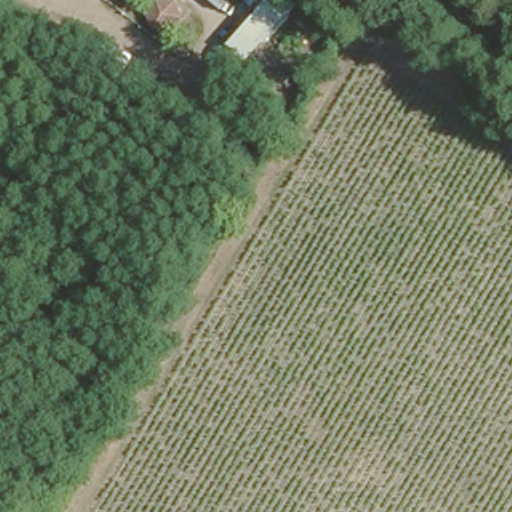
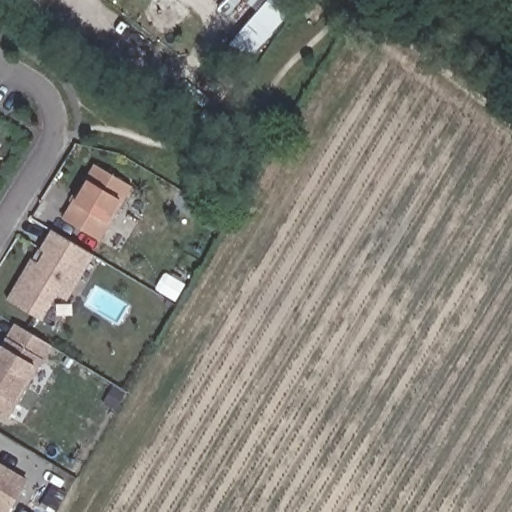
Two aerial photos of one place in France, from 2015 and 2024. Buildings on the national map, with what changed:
unchanged [(184,19),(174,33),(153,32),(146,16),(155,0),(169,0),(175,0),(184,19)]
new [(220,6),(225,0),(241,0),(229,14),(220,6)]
new [(245,62),(227,47),(259,12),(243,0),(295,0),(297,2),(245,62)]
demolished [(317,74),(297,107),(274,95),(285,76),(278,72),(289,56),(317,74)]
new [(0,147),(0,142),(2,144),(0,147)]
new [(100,242),(61,219),(94,164),(133,186),(100,242)]
new [(67,300),(60,296),(53,300),(42,320),(7,300),(31,259),(32,260),(51,230),(94,255),(67,300)]
new [(8,419),(0,414),(0,348),(6,337),(15,323),(54,346),(44,360),(8,419)]
new [(0,462),(28,480),(10,512),(0,512),(0,462)]

